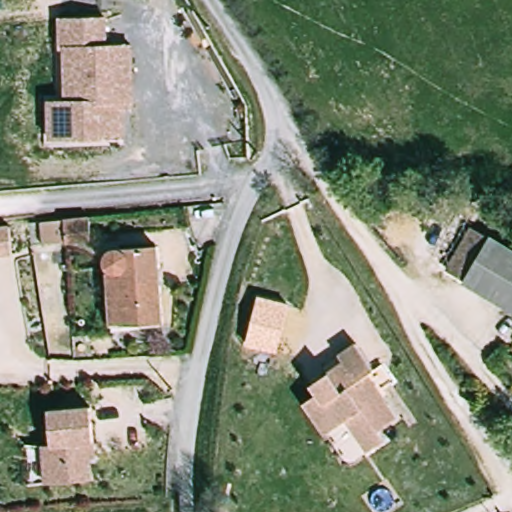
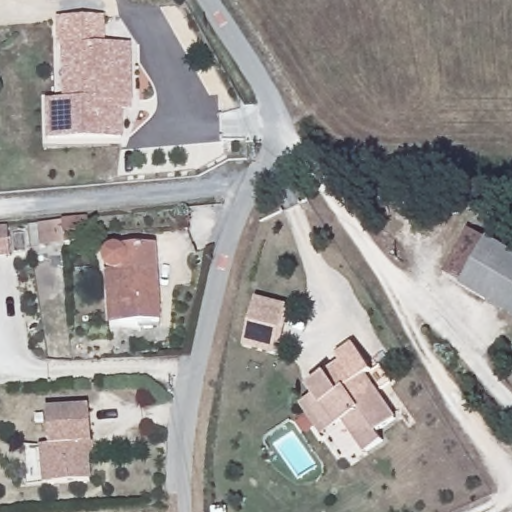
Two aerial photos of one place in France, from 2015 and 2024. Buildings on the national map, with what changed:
unchanged [(59,103),(58,50),(54,50),(53,20),(98,19),(99,47),(124,46),(126,103),(126,111),(115,111),(116,139),(60,140),(43,141),(42,103),(59,103)]
unchanged [(39,229),(38,223),(81,219),(87,218),(90,242),(82,243),(53,246),(41,247),(39,229)]
unchanged [(7,222),(9,249),(0,250),(0,223),(7,222)]
unchanged [(462,282),(444,271),(469,229),(487,239),(512,254),(512,313),(462,283),(462,282)]
unchanged [(108,271),(105,268),(103,262),(105,256),(109,251),(115,250),(155,248),(160,323),(120,326),(117,273),(115,273),(108,271)]
unchanged [(109,326),(106,274),(115,273),(120,326),(109,326)]
unchanged [(287,306),(278,351),(246,346),(259,297),(287,306)]
unchanged [(300,404),(314,394),(308,385),(325,373),(331,369),(341,363),(335,355),(352,344),(370,370),(364,375),(394,419),(375,432),(381,441),(364,453),(342,421),(335,425),(321,435),(300,404)]
unchanged [(44,412),(87,409),(89,445),(90,458),(85,459),(87,484),(49,486),(39,487),(36,447),(46,447),(44,412)]

